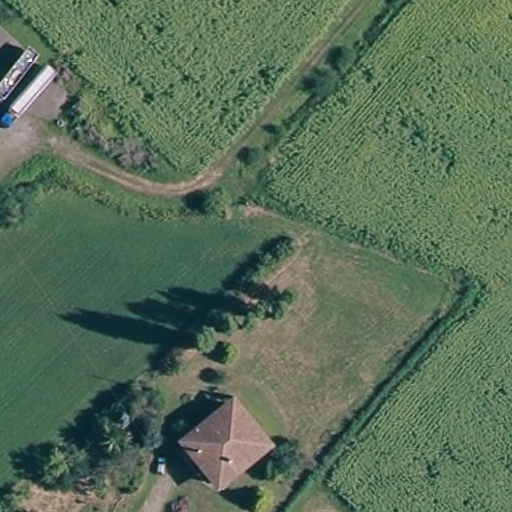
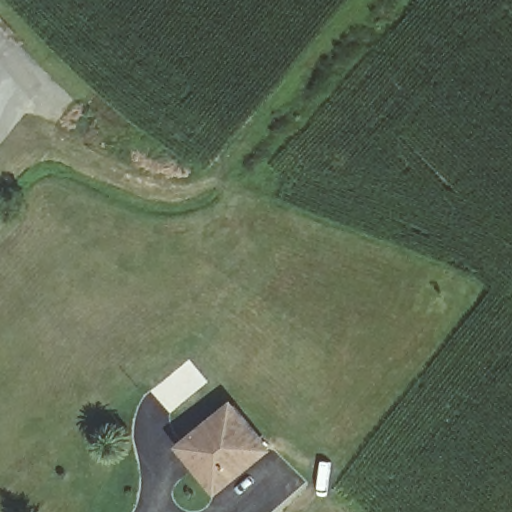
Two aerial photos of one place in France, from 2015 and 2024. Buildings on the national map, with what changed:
unchanged [(218,479),(203,459),(200,462),(185,442),(234,405),(269,453),(251,466),(224,486),(218,479)]

